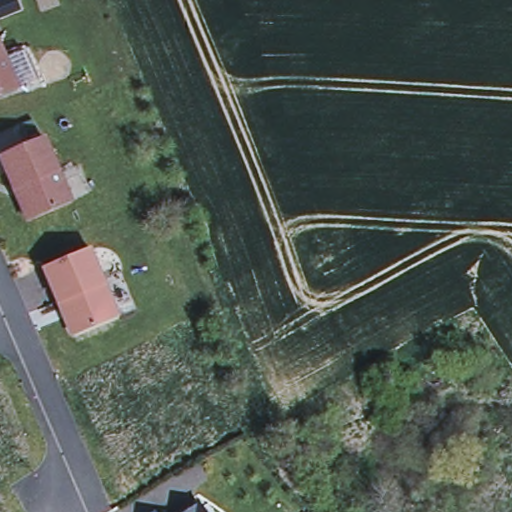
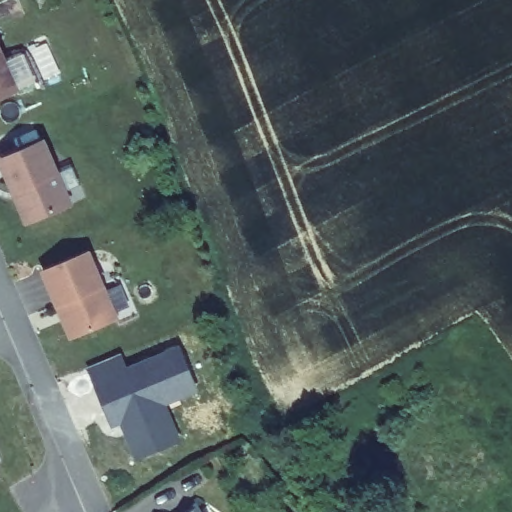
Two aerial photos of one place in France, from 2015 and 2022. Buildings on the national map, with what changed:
unchanged [(0,97),(0,52),(16,90),(0,97)]
unchanged [(45,142),(71,205),(28,223),(1,160),(45,142)]
unchanged [(90,252),(118,320),(76,337),(70,334),(43,272),(90,252)]
new [(121,355),(126,367),(180,346),(199,395),(168,408),(183,443),(135,462),(120,425),(110,428),(86,368),(121,355)]
unchanged [(195,504),(200,512),(183,512),(195,504)]

